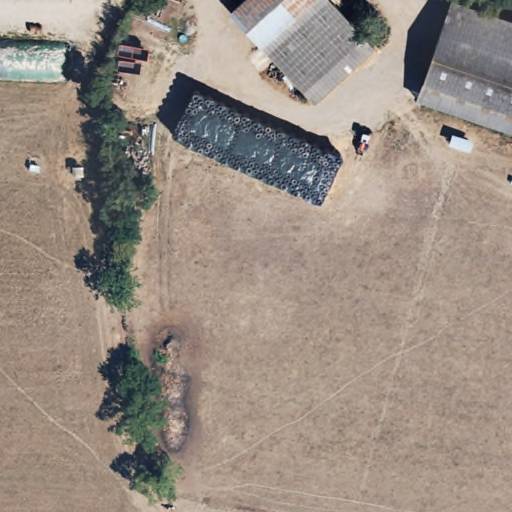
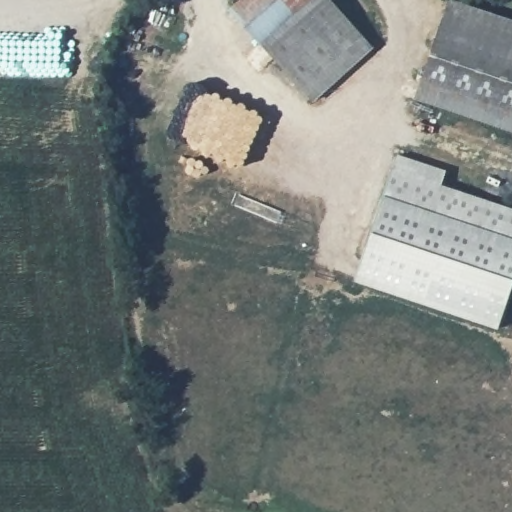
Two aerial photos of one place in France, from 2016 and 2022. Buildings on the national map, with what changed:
unchanged [(230,10),(241,0),(331,0),(372,46),(312,101),(230,10)]
unchanged [(450,0),(455,0),(509,18),(512,19),(512,131),(415,97),(450,0)]
new [(446,172),(441,187),(512,211),(512,291),(499,330),(356,281),(397,156),(446,172)]

